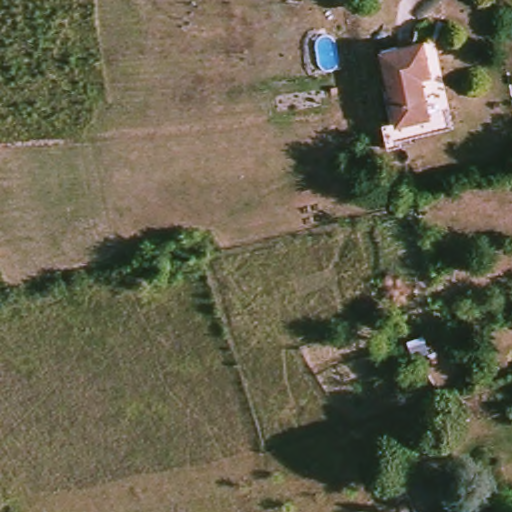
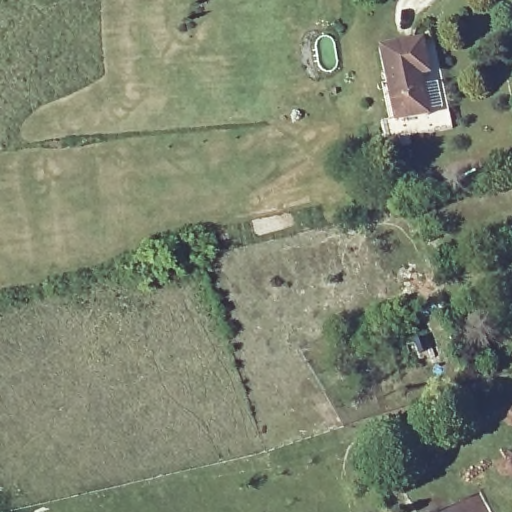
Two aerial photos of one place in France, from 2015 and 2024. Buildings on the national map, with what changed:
unchanged [(428,114),(395,122),(379,48),(422,39),(430,72),(420,74),(428,114)]

